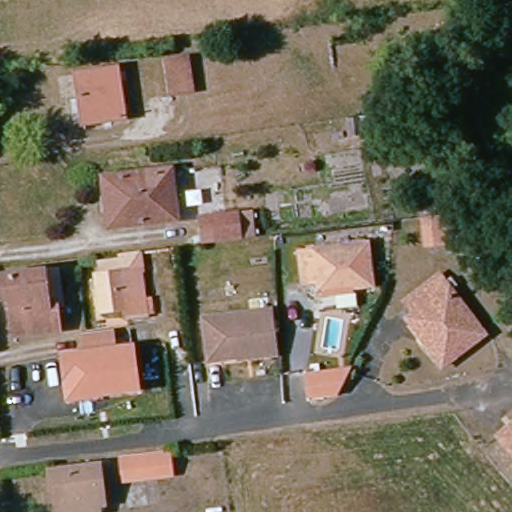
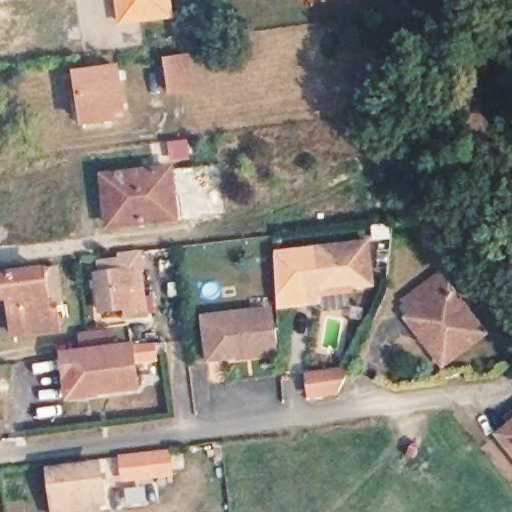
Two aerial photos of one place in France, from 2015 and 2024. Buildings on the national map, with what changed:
new [(173,17),(117,24),(114,0),(171,0),(173,17)]
unchanged [(191,93),(174,96),(170,65),(187,63),(191,93)]
unchanged [(119,119),(81,124),(75,77),(112,72),(119,119)]
unchanged [(174,197),(165,198),(169,222),(116,229),(113,202),(104,203),(102,182),(171,172),(174,197)]
unchanged [(431,244),(427,213),(464,208),(468,240),(431,244)]
unchanged [(201,220),(247,214),(250,240),(205,245),(201,220)]
unchanged [(315,303),(314,289),(299,290),(295,260),(362,250),(368,290),(348,292),(349,299),(315,303)]
unchanged [(137,252),(140,273),(136,274),(144,320),(125,323),(123,312),(99,316),(93,280),(100,279),(98,267),(116,264),(115,255),(137,252)]
unchanged [(54,280),(42,282),(47,324),(10,330),(5,299),(0,300),(0,273),(52,268),(54,280)]
unchanged [(422,321),(412,307),(440,282),(485,336),(448,369),(436,355),(412,329),(422,321)]
unchanged [(274,355),(208,364),(202,321),(269,313),(274,355)]
unchanged [(64,396),(59,362),(81,359),(79,344),(78,338),(109,335),(110,340),(112,356),(128,355),(134,396),(95,401),(66,405),(64,396)]
unchanged [(512,430),(512,461),(497,441),(512,430)]
unchanged [(165,477),(120,483),(117,466),(162,458),(165,477)]
unchanged [(95,505),(97,512),(55,512),(50,478),(99,470),(104,504),(95,505)]

